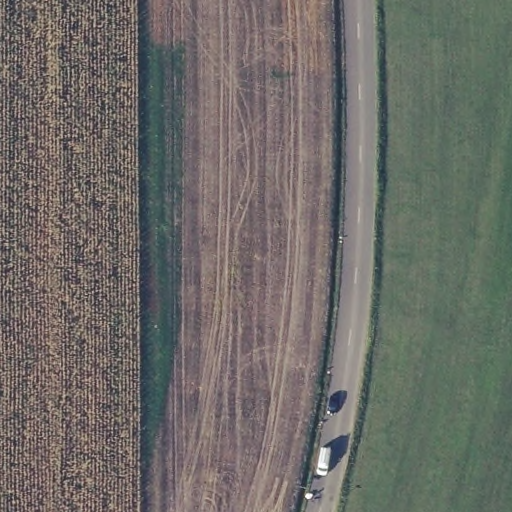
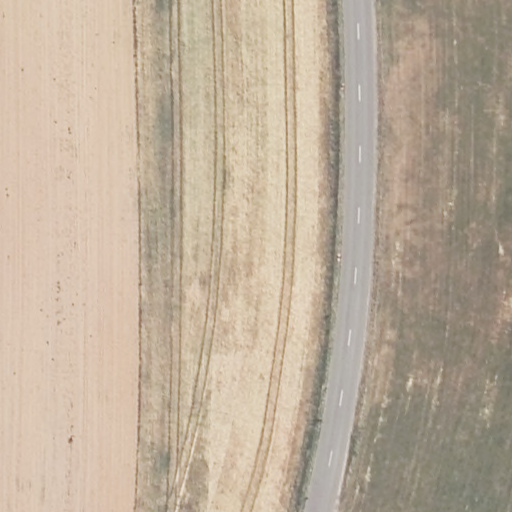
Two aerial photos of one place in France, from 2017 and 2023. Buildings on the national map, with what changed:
[]

